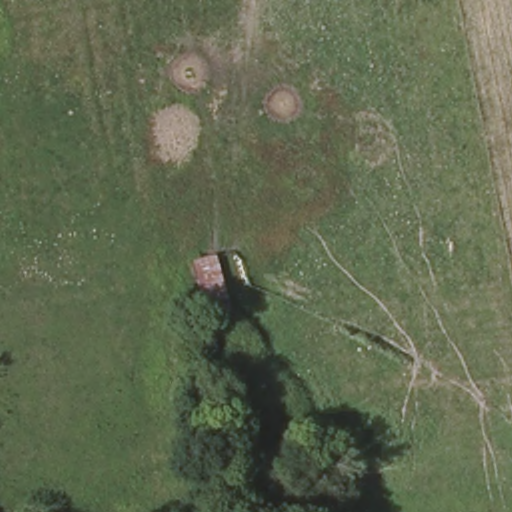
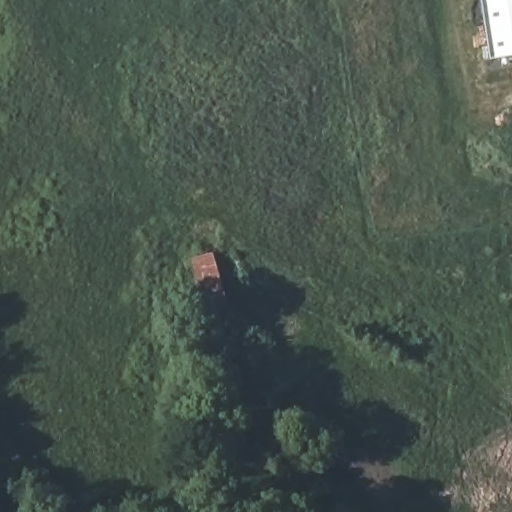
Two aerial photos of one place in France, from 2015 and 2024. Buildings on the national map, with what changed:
new [(492,59),(483,0),(512,0),(512,55),(492,59)]
demolished [(155,81),(146,83),(141,63),(150,62),(155,81)]
unchanged [(213,250),(226,295),(202,301),(189,257),(213,250)]

